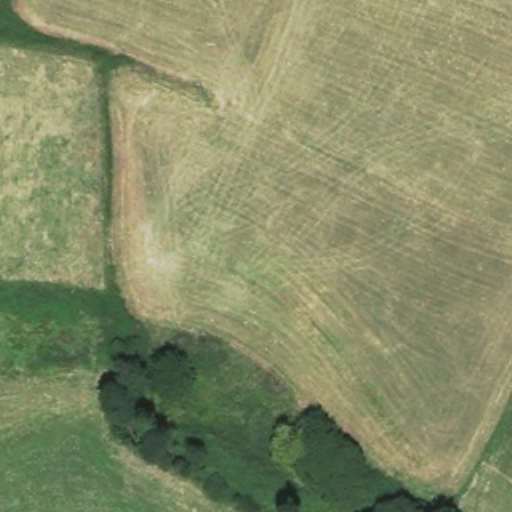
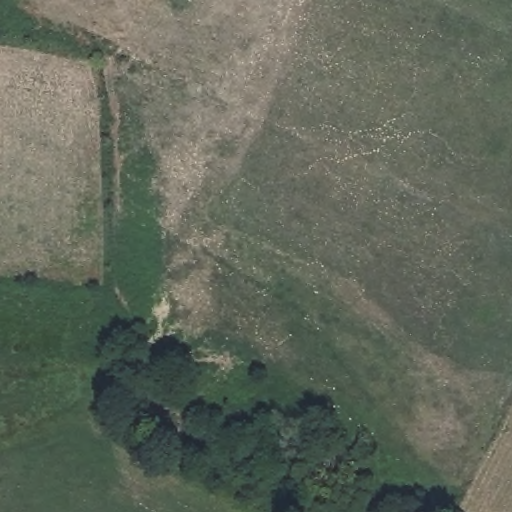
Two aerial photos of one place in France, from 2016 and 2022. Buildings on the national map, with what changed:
[]

